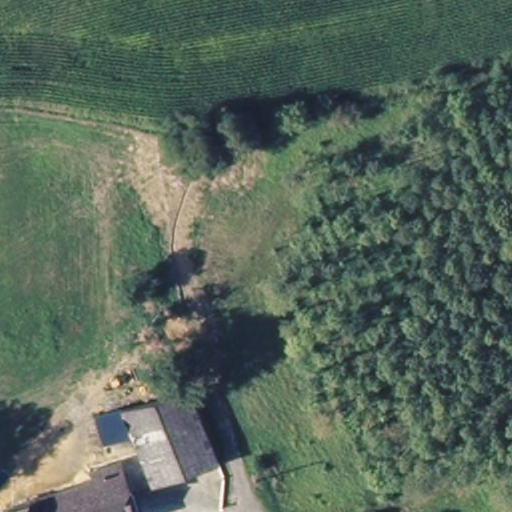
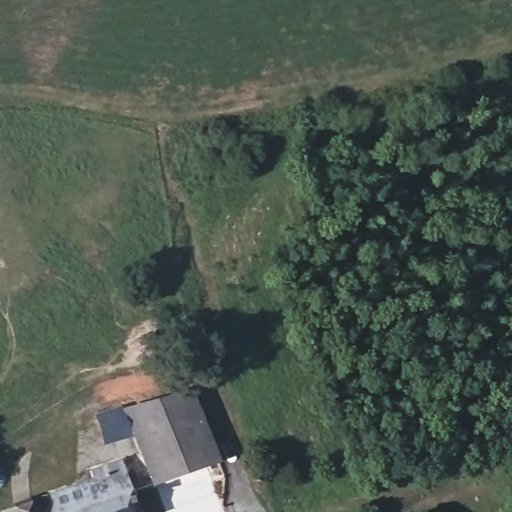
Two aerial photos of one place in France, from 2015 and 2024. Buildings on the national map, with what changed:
unchanged [(101,422),(187,385),(220,461),(154,489),(131,435),(110,444),(101,422)]
unchanged [(88,470),(119,457),(141,512),(14,512),(92,480),(88,470)]

